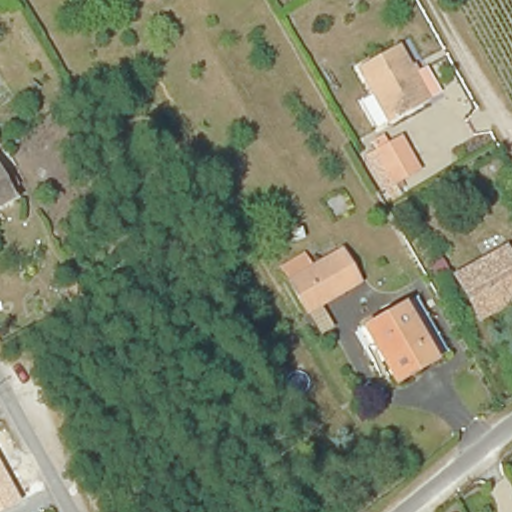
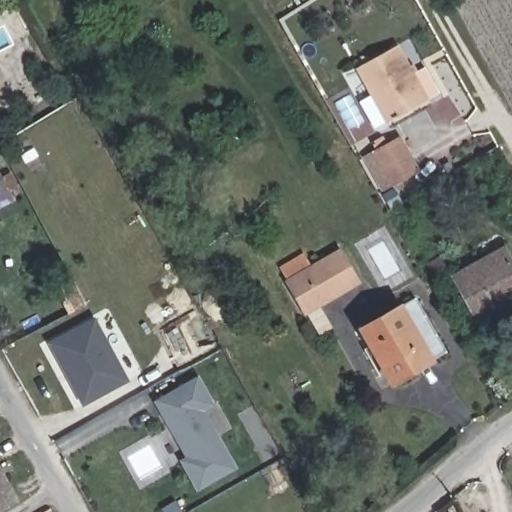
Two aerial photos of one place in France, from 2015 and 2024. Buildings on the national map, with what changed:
unchanged [(398,45),(428,100),(421,104),(389,121),(387,119),(373,126),(359,101),(373,94),(358,67),(390,49),(398,45)]
unchanged [(393,184),(376,154),(397,142),(412,172),(393,184)]
unchanged [(0,211),(0,182),(13,204),(0,211)]
unchanged [(482,321),(459,278),(502,254),(507,252),(512,261),(512,304),(482,321)]
unchanged [(299,314),(283,285),(333,256),(338,254),(353,284),(350,285),(299,314)]
unchanged [(410,374),(377,320),(418,299),(446,356),(410,374)]
new [(97,319),(131,379),(85,402),(54,340),(97,319)]
unchanged [(393,383),(364,326),(377,320),(410,374),(393,383)]
new [(200,375),(216,402),(205,408),(238,466),(199,490),(183,460),(189,457),(156,400),(200,375)]
unchanged [(0,461),(21,499),(0,511),(0,461)]

